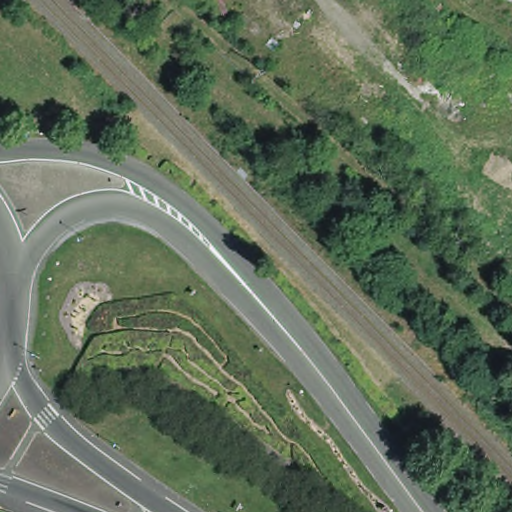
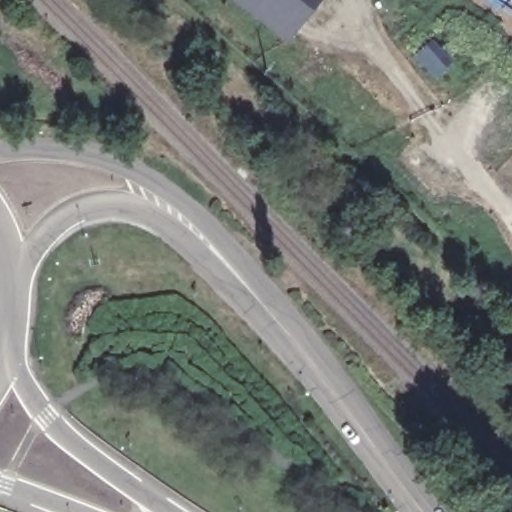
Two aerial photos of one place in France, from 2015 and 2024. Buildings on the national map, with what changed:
new [(287,38),(238,0),(317,0),(287,38)]

